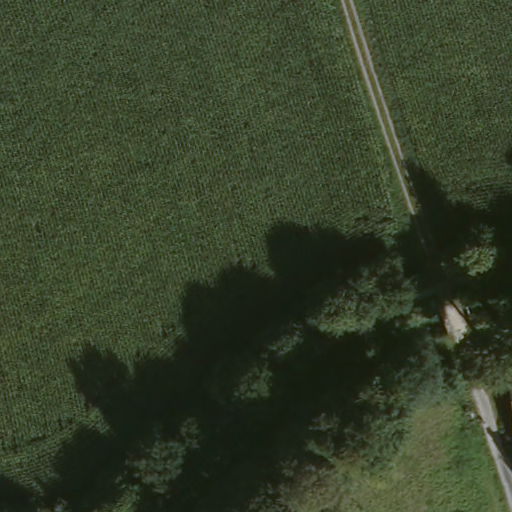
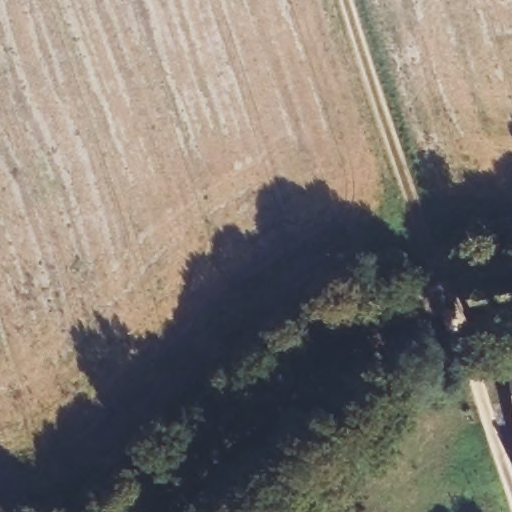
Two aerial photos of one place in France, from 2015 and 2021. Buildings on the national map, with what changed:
unchanged [(508,373),(512,373),(512,386),(508,373)]

